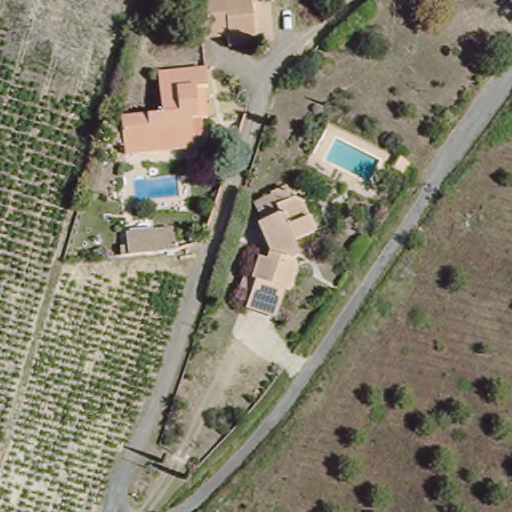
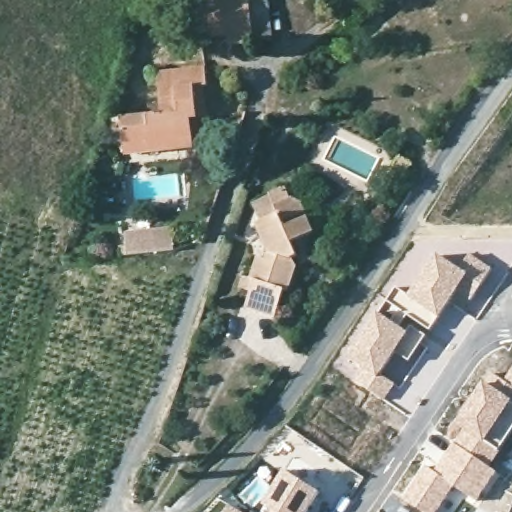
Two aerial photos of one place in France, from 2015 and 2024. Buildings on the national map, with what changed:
unchanged [(224,45),(225,34),(200,33),(200,0),(250,0),(250,46),(224,45)]
unchanged [(250,46),(250,0),(274,0),(275,44),(250,46)]
unchanged [(200,67),(201,84),(197,84),(200,119),(185,120),(188,145),(121,149),(119,112),(157,110),(155,70),(200,67)]
unchanged [(268,207),(262,197),(277,188),(280,199),(295,204),(310,234),(294,244),(300,255),(292,260),(297,270),(290,292),(285,292),(278,318),(250,309),(257,282),(252,281),(260,259),(267,262),(270,252),(257,225),(272,215),(268,207)]
new [(175,232),(177,254),(130,257),(128,236),(175,232)]
new [(460,267),(467,254),(492,269),(468,305),(457,296),(439,320),(408,296),(437,252),(460,267)]
new [(410,332),(413,327),(427,336),(410,361),(397,352),(382,375),(395,384),(383,401),(335,369),(377,311),(410,332)]
new [(492,372),(503,380),(512,367),(512,433),(490,467),(452,441),(445,436),(492,372)]
new [(452,441),(490,467),(497,471),(477,502),(465,495),(433,469),(452,441)]
new [(423,462),(433,469),(465,495),(454,512),(422,512),(399,498),(423,462)]
new [(262,508),(285,471),(320,492),(305,512),(267,512),(262,508)]
new [(229,503),(243,512),(223,512),(229,503)]

